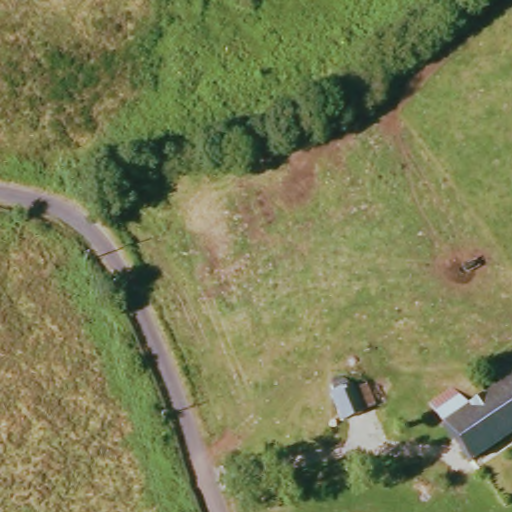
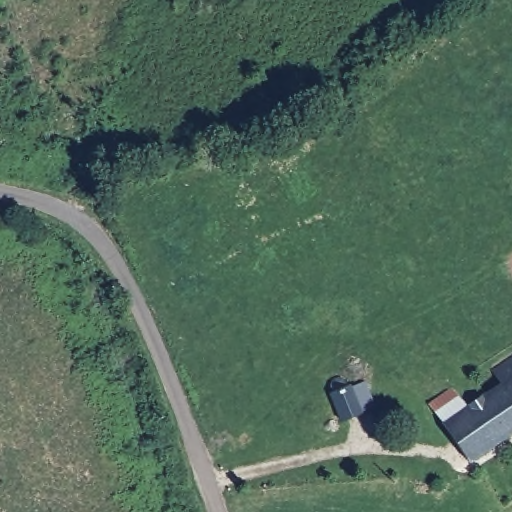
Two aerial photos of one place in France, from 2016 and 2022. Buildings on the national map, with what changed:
unchanged [(431,406),(452,392),(464,412),(511,382),(503,366),(512,360),(512,435),(469,465),(431,406)]
unchanged [(368,415),(371,421),(350,429),(353,436),(318,451),(310,432),(345,415),(339,403),(343,401),(339,387),(354,382),(359,396),(376,389),(384,408),(368,415)]

